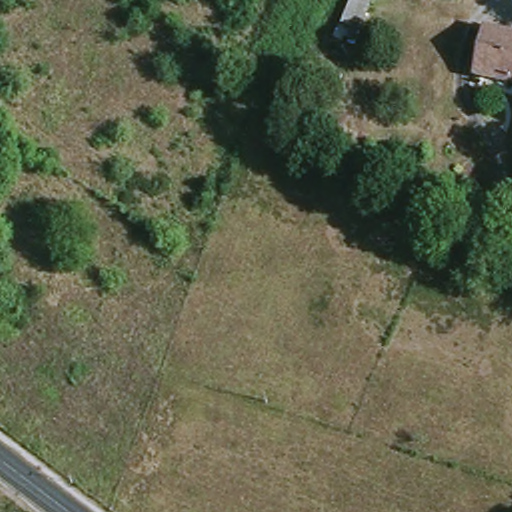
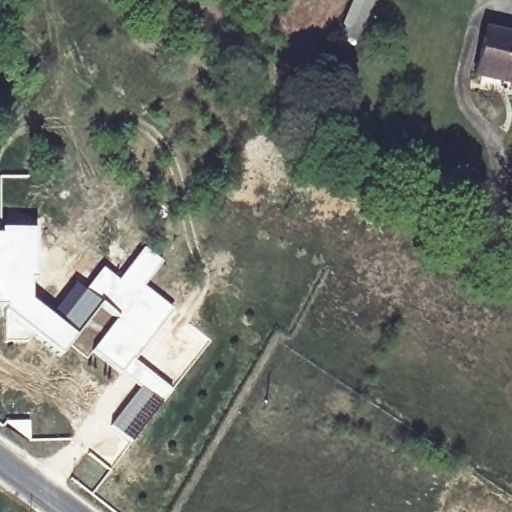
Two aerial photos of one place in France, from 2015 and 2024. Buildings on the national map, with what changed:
unchanged [(356,34),(353,39),(346,35),(352,21),(354,22),(363,0),(381,0),(367,39),(356,34)]
unchanged [(512,86),(475,80),(481,40),(512,44),(512,86)]
new [(36,227),(36,280),(31,280),(31,300),(50,315),(75,335),(78,337),(71,346),(62,358),(31,335),(27,343),(2,342),(2,310),(0,310),(0,227),(36,227)]
new [(121,374),(91,352),(87,357),(71,346),(78,337),(75,335),(100,301),(84,288),(101,266),(117,277),(142,246),(163,261),(145,285),(173,308),(135,358),(173,389),(163,402),(132,442),(110,425),(138,386),(121,374)]
new [(75,282),(84,288),(100,301),(75,335),(50,315),(75,282)]

